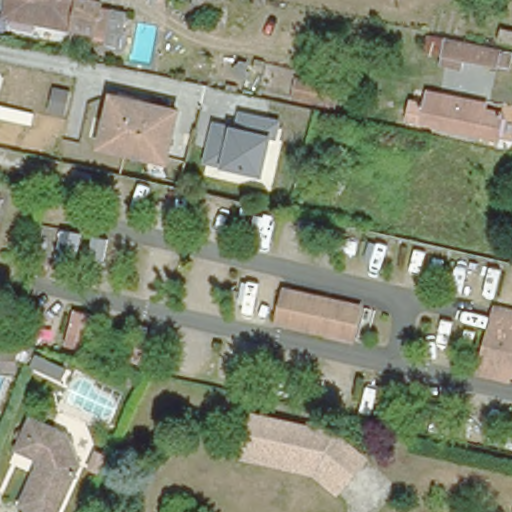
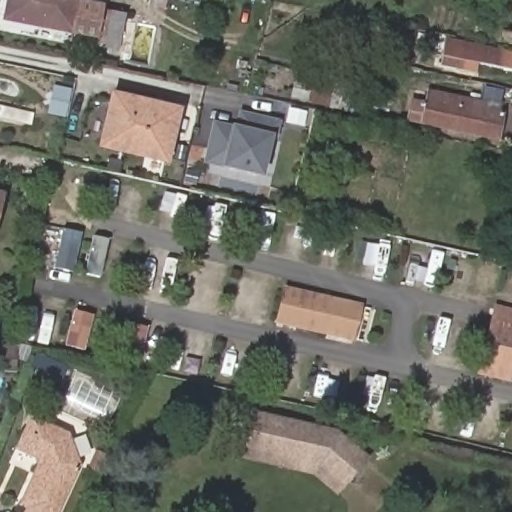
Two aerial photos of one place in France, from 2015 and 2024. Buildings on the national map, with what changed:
unchanged [(71,24),(70,27),(1,14),(4,0),(98,0),(93,29),(71,24)]
unchanged [(128,9),(120,44),(110,42),(106,41),(114,6),(119,7),(128,9)]
unchanged [(499,40),(501,30),(512,32),(512,42),(499,40)]
unchanged [(498,75),(444,64),(447,48),(501,59),(498,75)]
unchanged [(300,60),(314,64),(310,80),(297,77),(300,60)]
unchanged [(500,135),(494,132),(493,138),(417,122),(424,90),(481,102),(479,107),(498,111),(497,116),(504,117),(500,135)]
unchanged [(168,159),(128,150),(126,155),(101,149),(114,98),(177,111),(168,159)]
unchanged [(278,141),(268,139),(259,175),(199,161),(211,117),(235,123),(239,110),(283,120),(278,141)]
unchanged [(359,340),(283,321),(290,290),(366,308),(359,340)]
unchanged [(487,372),(504,308),(512,311),(512,379),(487,372)]
unchanged [(317,464),(245,448),(248,440),(255,405),(338,424),(368,450),(344,477),(339,483),(317,464)]
unchanged [(33,410),(70,428),(80,459),(56,512),(46,512),(21,501),(39,464),(38,457),(15,446),(33,410)]

